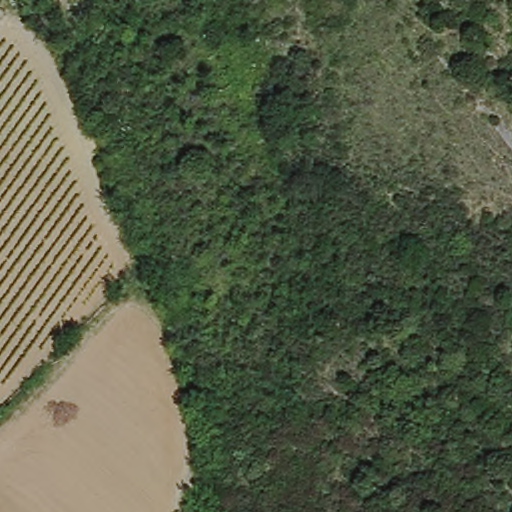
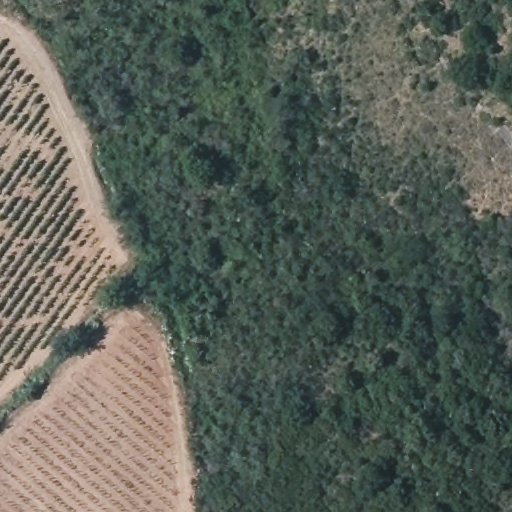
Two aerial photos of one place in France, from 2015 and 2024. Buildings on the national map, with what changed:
[]

